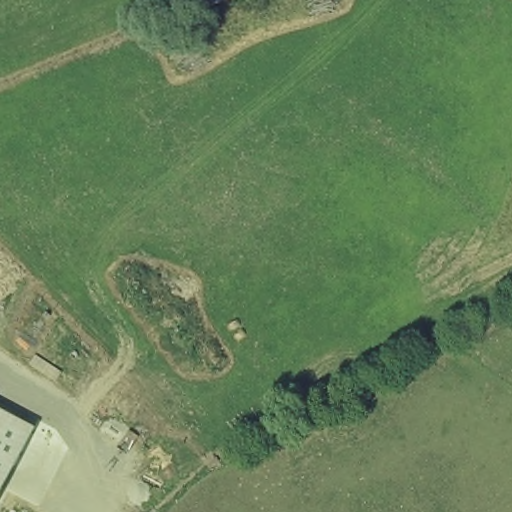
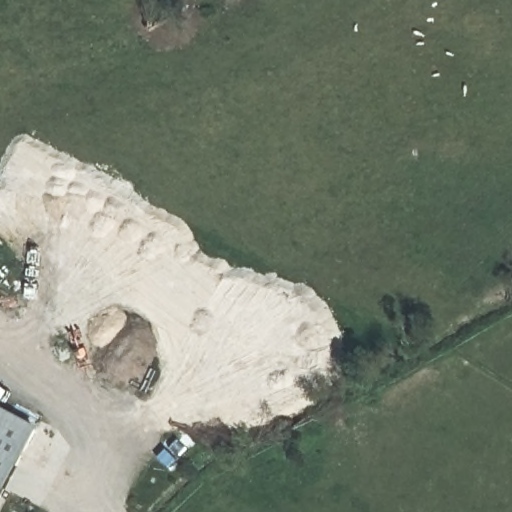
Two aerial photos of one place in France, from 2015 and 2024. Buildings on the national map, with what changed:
unchanged [(30,435),(0,493),(0,418),(30,435)]

